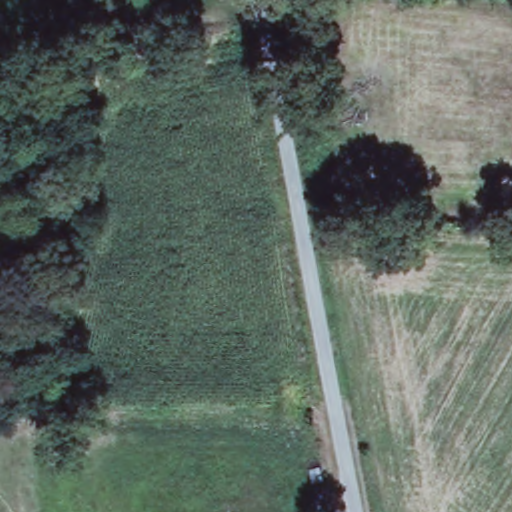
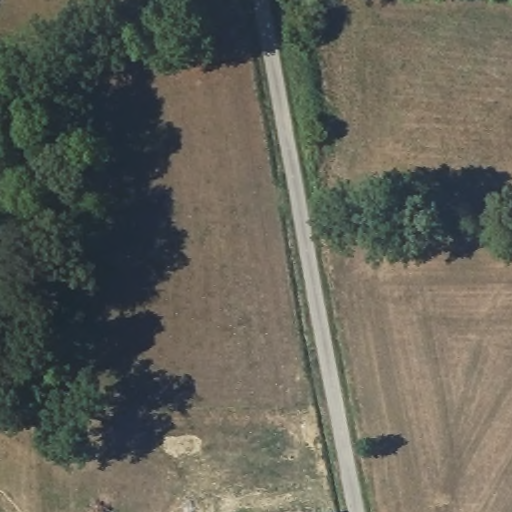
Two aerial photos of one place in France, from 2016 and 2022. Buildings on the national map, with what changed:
[]

